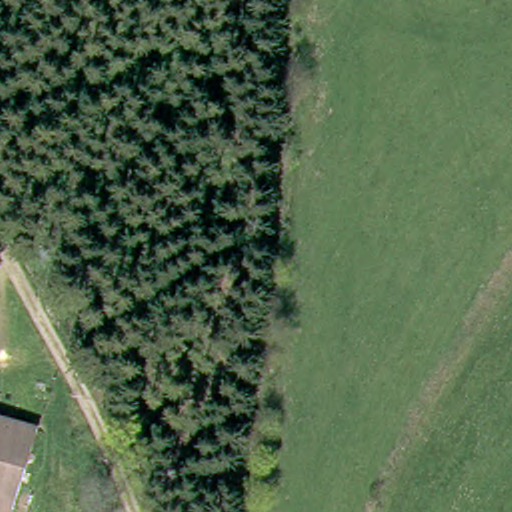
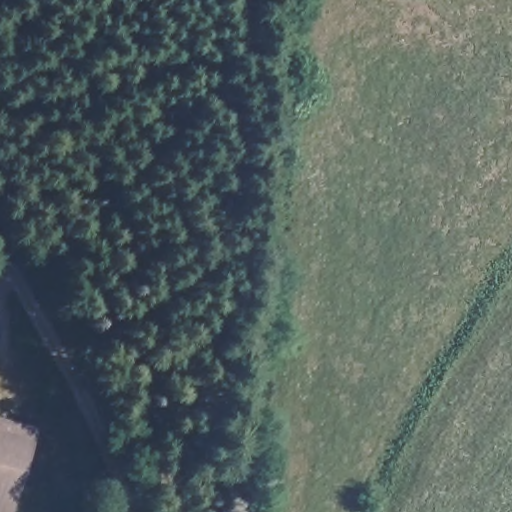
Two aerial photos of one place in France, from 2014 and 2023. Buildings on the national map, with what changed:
unchanged [(0,421),(7,422),(25,426),(12,484),(4,510),(0,510),(0,421)]

